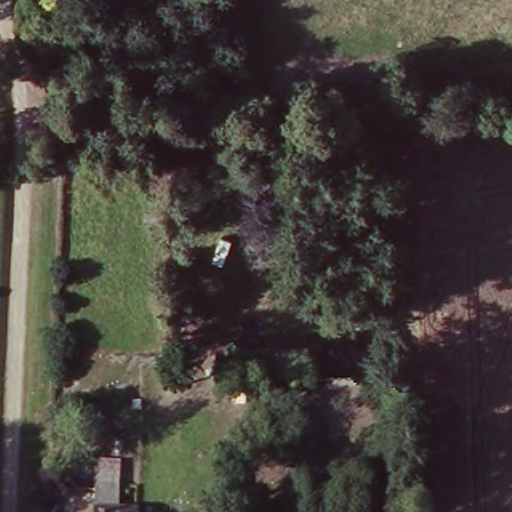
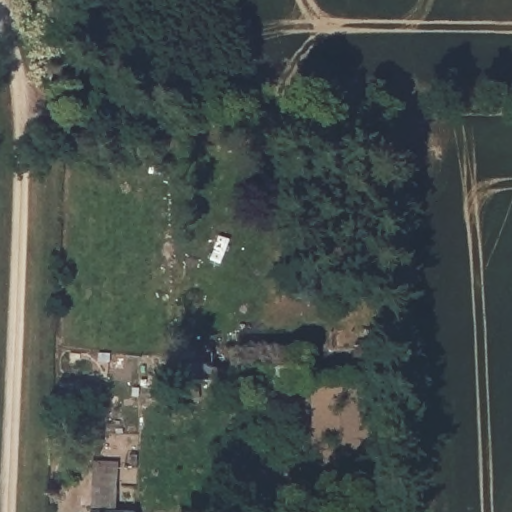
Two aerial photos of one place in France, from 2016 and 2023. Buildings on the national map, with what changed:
unchanged [(399,343),(400,376),(332,376),(332,385),(263,387),(264,379),(235,379),(235,348),(399,343)]
unchanged [(118,476),(117,509),(135,509),(135,512),(87,512),(89,474),(118,476)]

